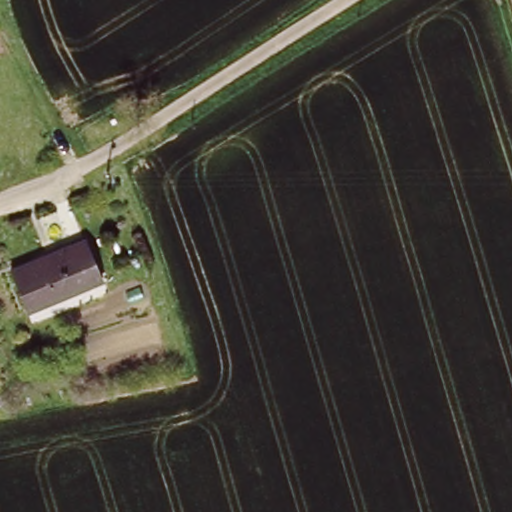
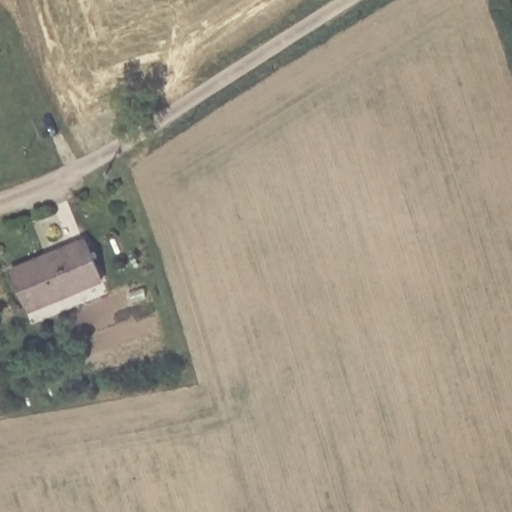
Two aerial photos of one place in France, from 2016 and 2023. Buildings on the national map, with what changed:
unchanged [(82,232),(101,274),(27,305),(12,263),(82,232)]

